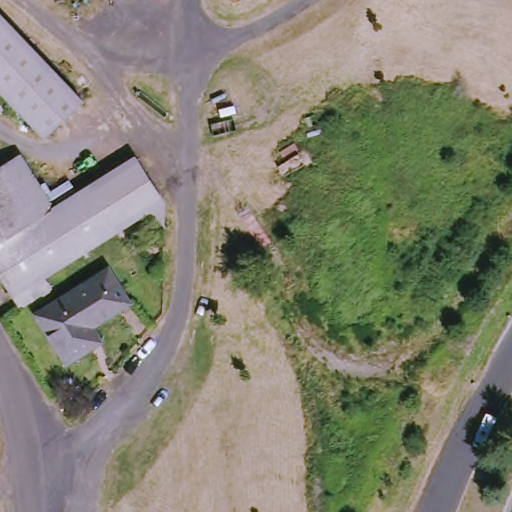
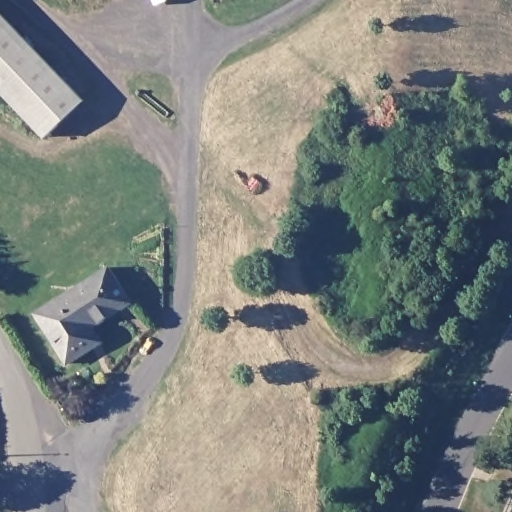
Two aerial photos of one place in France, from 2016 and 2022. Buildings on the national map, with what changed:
unchanged [(42,140),(0,92),(0,7),(83,104),(42,140)]
demolished [(23,303),(19,304),(13,295),(0,274),(0,159),(10,153),(17,161),(47,209),(88,183),(116,229),(41,277),(48,286),(23,303)]
demolished [(151,225),(143,212),(116,229),(88,183),(129,158),(164,198),(163,218),(162,224),(154,229),(151,225)]
unchanged [(128,302),(89,327),(99,341),(66,363),(35,314),(107,268),(128,302)]

